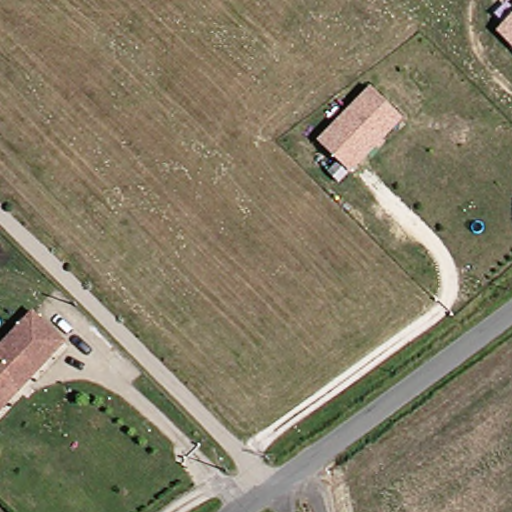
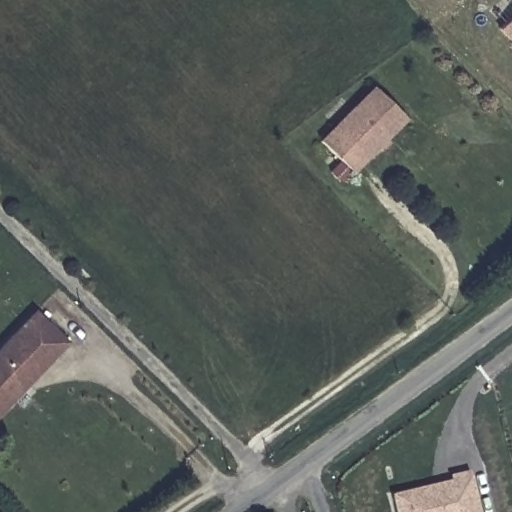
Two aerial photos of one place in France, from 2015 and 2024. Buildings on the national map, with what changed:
unchanged [(496,31),(504,22),(495,13),(507,2),(512,7),(512,47),(496,31)]
unchanged [(372,86),(402,116),(350,170),(320,140),(372,86)]
unchanged [(71,343),(12,407),(0,419),(0,354),(39,313),(71,343)]
new [(447,481),(465,477),(473,512),(392,512),(390,501),(448,486),(447,481)]

